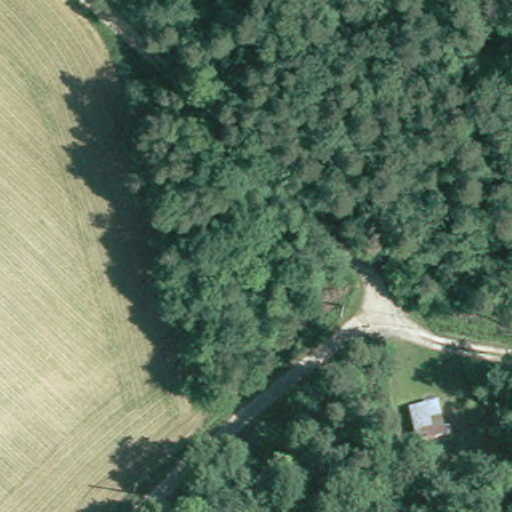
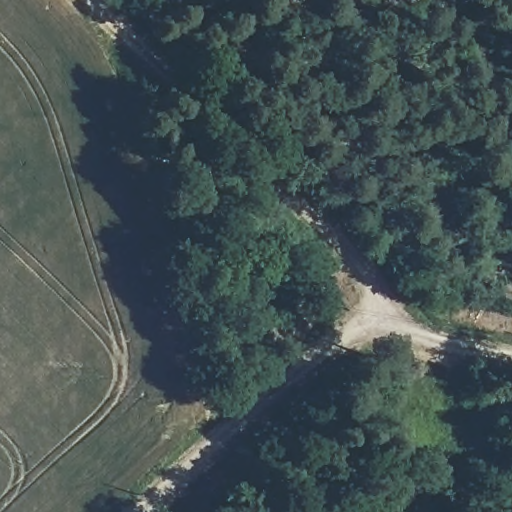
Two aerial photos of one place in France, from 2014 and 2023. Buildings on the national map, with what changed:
unchanged [(448,425),(413,435),(405,400),(442,398),(448,425)]

